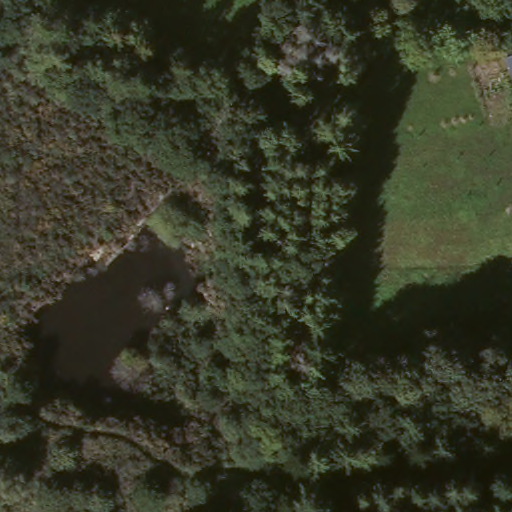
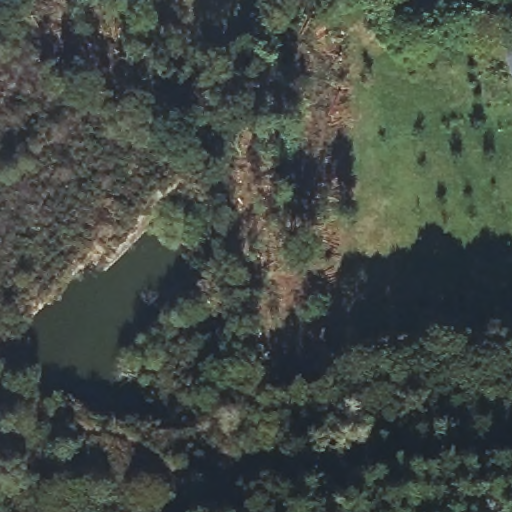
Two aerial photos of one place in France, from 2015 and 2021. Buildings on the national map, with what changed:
unchanged [(510,61),(512,61),(512,72),(510,61)]

